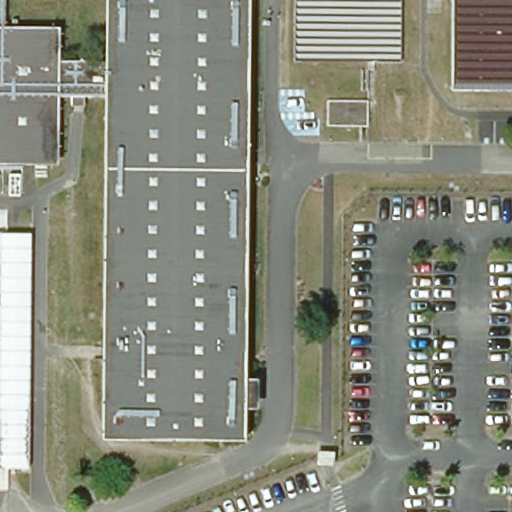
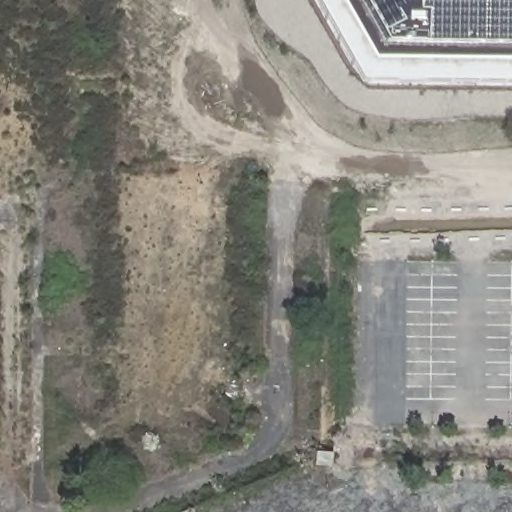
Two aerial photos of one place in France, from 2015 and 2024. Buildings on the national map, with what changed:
demolished [(240,167),(238,382),(238,411),(237,438),(108,437),(111,101),(51,101),(50,163),(0,163),(0,0),(5,0),(5,34),(53,35),(52,64),(111,65),(112,0),(243,0),(241,144),(240,167)]
new [(361,84),(315,0),(512,0),(512,85),(361,84)]
demolished [(456,89),(457,0),(512,0),(512,89),(456,89)]
demolished [(365,126),(325,126),(325,101),(365,100),(365,126)]

